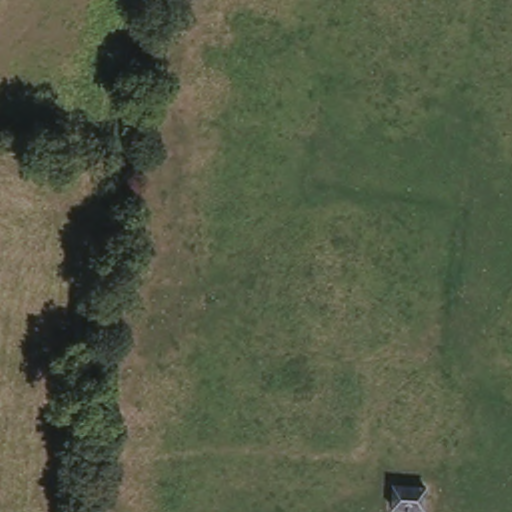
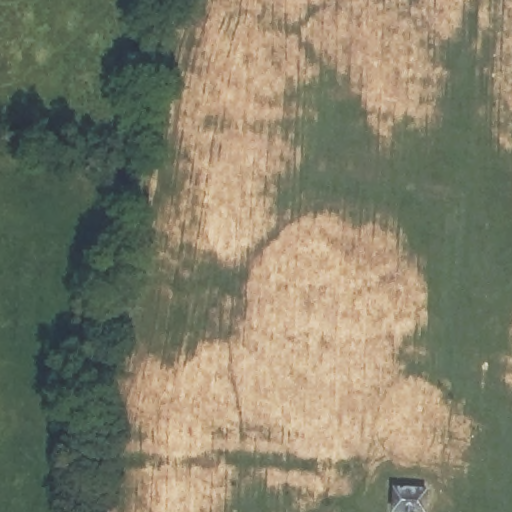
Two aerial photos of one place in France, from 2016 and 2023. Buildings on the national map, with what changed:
unchanged [(397,481),(431,481),(431,512),(411,512),(397,511),(397,481)]

